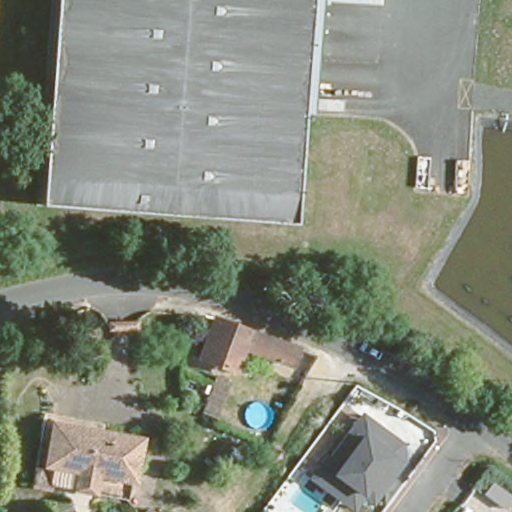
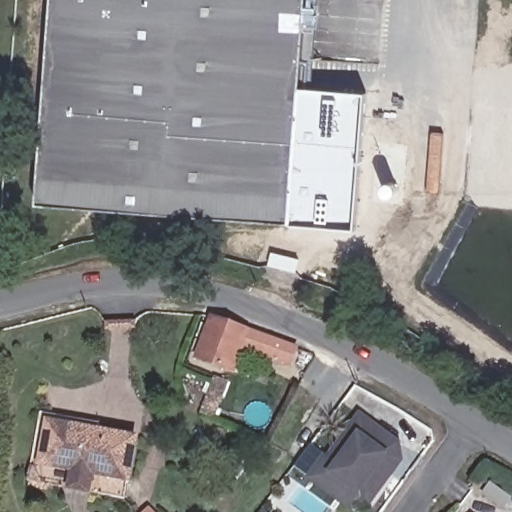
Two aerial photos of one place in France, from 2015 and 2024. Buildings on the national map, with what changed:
unchanged [(291,226),(32,207),(48,0),(308,0),(291,226)]
new [(291,226),(302,88),(366,93),(355,231),(291,226)]
unchanged [(209,317),(252,331),(267,336),(295,345),(292,353),(290,360),(260,350),(247,346),(242,344),(234,369),(197,358),(205,331),(209,317)]
unchanged [(205,393),(208,395),(214,382),(225,387),(219,400),(215,411),(200,405),(205,393)]
unchanged [(372,505),(361,499),(353,511),(309,480),(358,414),(412,452),(372,505)]
unchanged [(146,431),(134,477),(101,477),(99,496),(57,488),(60,468),(35,462),(45,417),(146,431)]
unchanged [(150,512),(145,512),(148,509),(150,512)]

